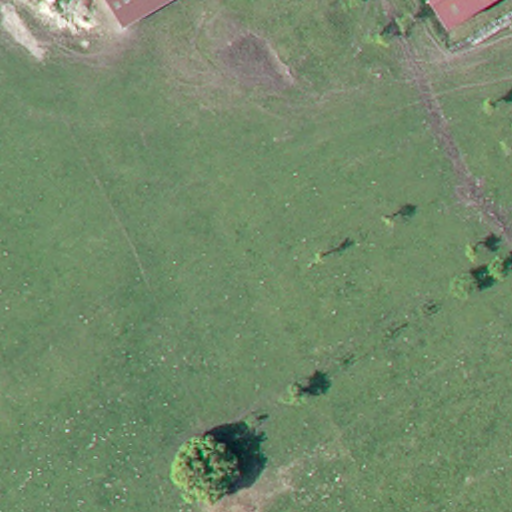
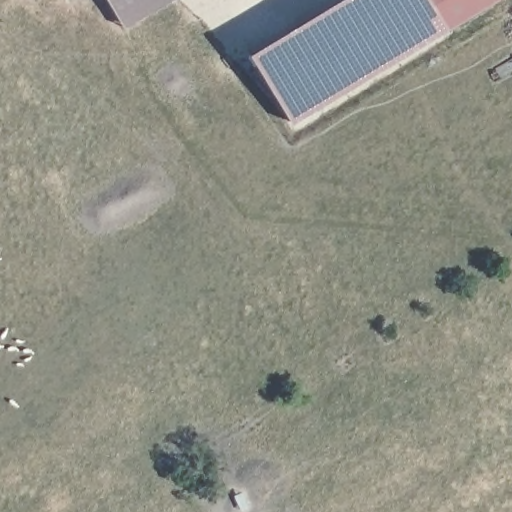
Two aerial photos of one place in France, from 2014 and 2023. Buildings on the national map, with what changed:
unchanged [(127,26),(111,0),(171,0),(127,26)]
new [(448,28),(292,122),(250,54),(340,0),(431,0),(448,28)]
unchanged [(448,28),(431,0),(494,0),(448,28)]

